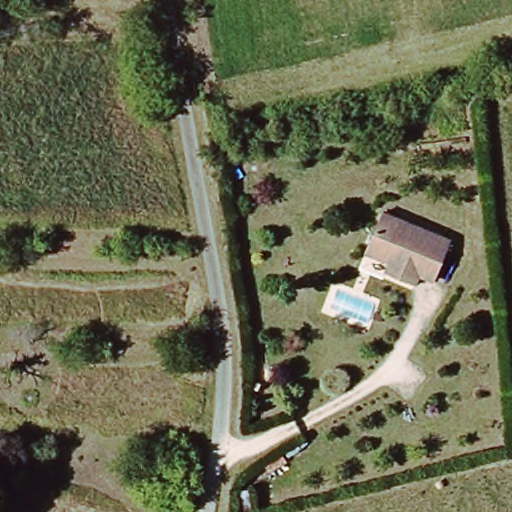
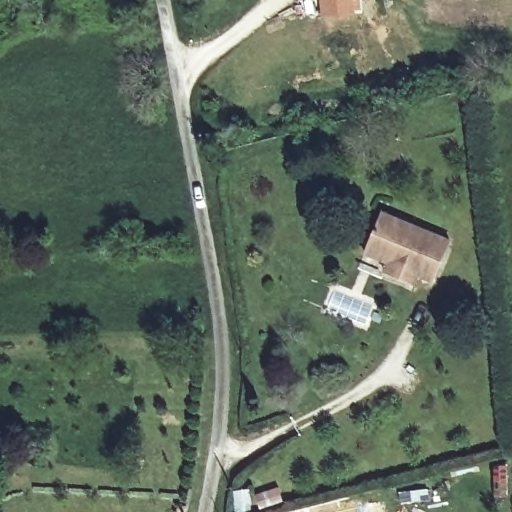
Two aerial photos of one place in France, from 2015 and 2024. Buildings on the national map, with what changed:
new [(321,0),(354,0),(355,14),(323,18),(321,0)]
unchanged [(230,131),(233,149),(217,152),(215,135),(230,131)]
unchanged [(400,267),(365,251),(382,210),(451,242),(432,281),(417,275),(414,284),(395,276),(400,267)]

